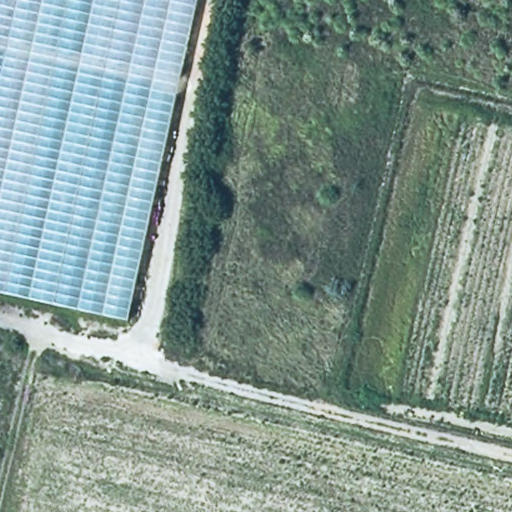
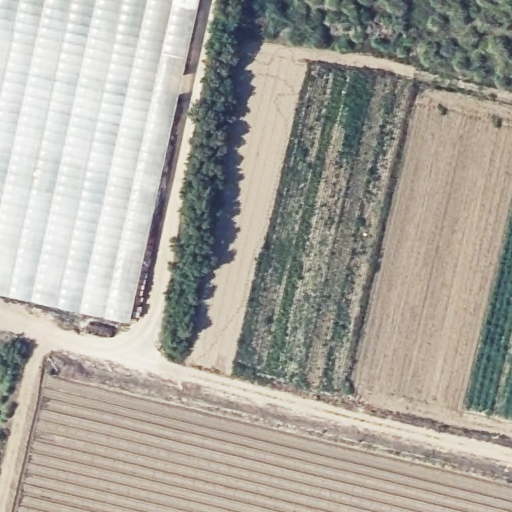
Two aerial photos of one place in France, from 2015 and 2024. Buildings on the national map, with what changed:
unchanged [(132,322),(0,293),(0,0),(199,0),(132,322)]

